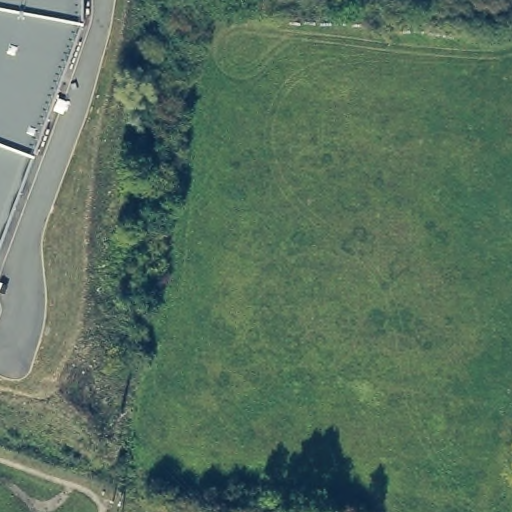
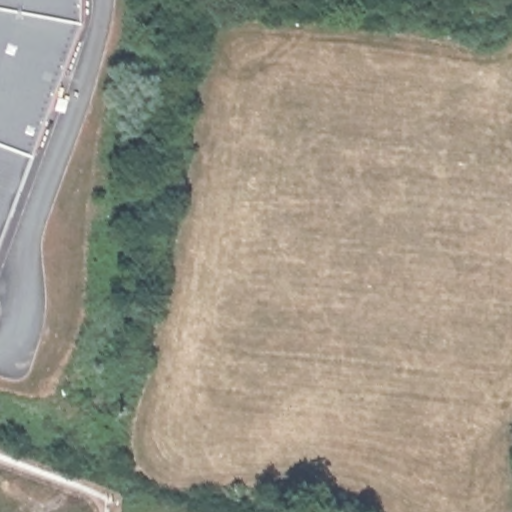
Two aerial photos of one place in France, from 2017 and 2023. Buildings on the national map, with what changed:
unchanged [(82,20),(0,241),(0,0),(82,0),(82,20)]

